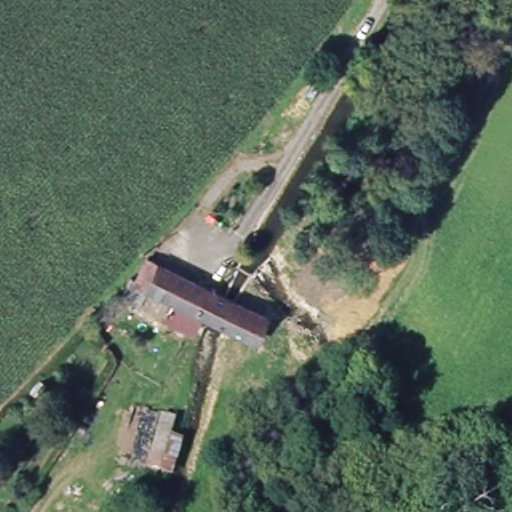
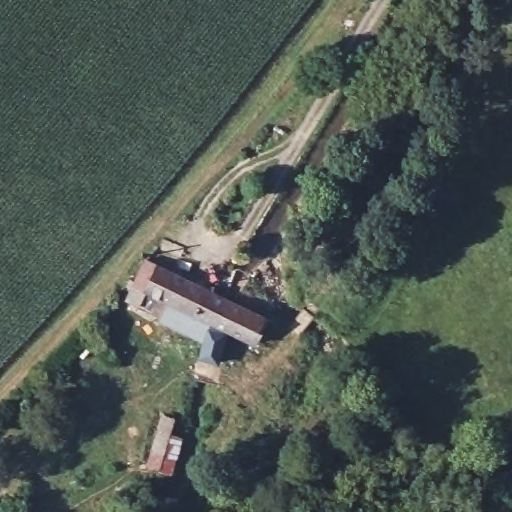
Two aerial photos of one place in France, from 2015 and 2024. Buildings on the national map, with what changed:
unchanged [(141,293),(155,266),(222,299),(239,307),(266,320),(252,349),(230,337),(210,328),(141,293)]

